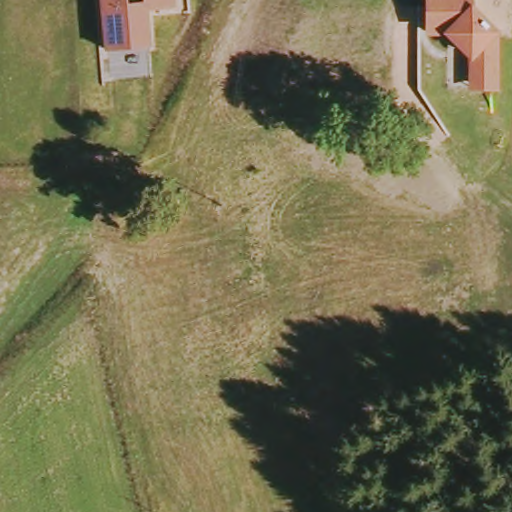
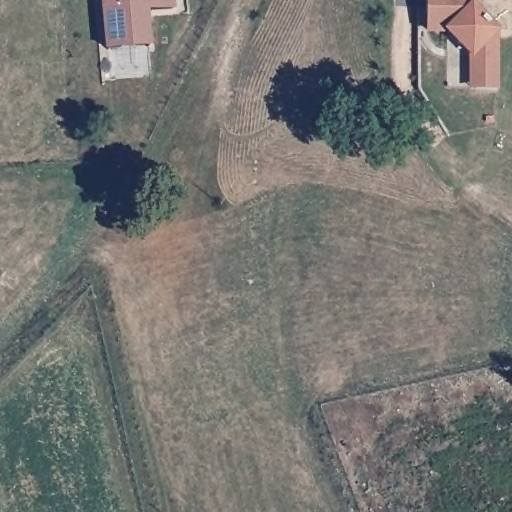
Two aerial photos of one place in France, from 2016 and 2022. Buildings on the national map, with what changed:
unchanged [(173,7),(145,9),(148,46),(107,49),(103,0),(172,0),(173,7)]
unchanged [(470,88),(470,72),(470,56),(445,32),(426,32),(426,0),(470,0),(470,7),(494,31),(494,72),(494,88),(470,88)]

